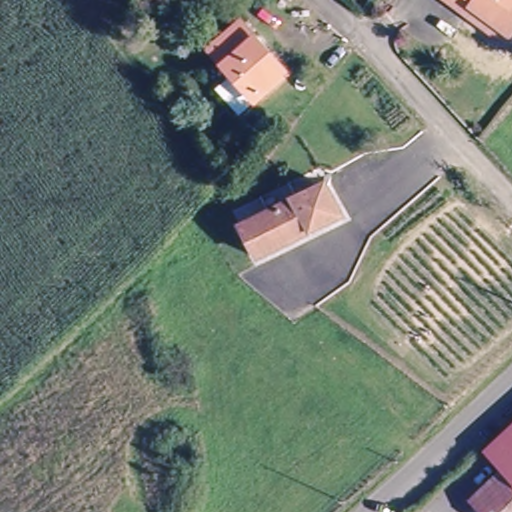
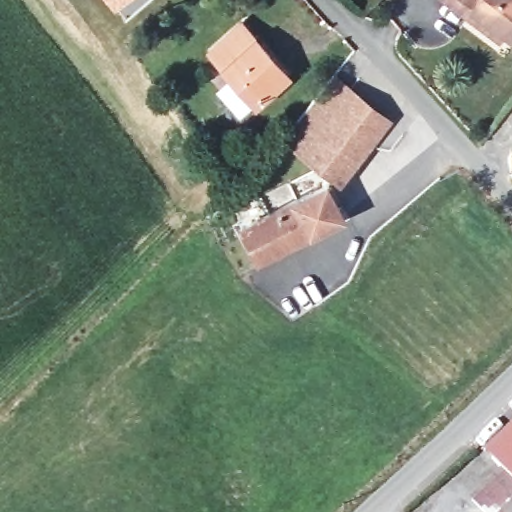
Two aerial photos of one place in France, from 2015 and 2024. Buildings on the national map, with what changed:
new [(114,8),(107,0),(124,0),(114,8)]
unchanged [(469,15),(448,0),(512,0),(512,29),(509,33),(503,29),(498,36),(469,15)]
unchanged [(210,50),(240,22),(255,38),(285,72),(254,100),(210,50)]
new [(340,184),(282,138),(334,72),(391,119),(340,184)]
unchanged [(240,227),(325,184),(342,217),(260,257),(240,227)]
unchanged [(498,472),(480,452),(512,422),(512,512),(477,512),(466,501),(498,472)]

